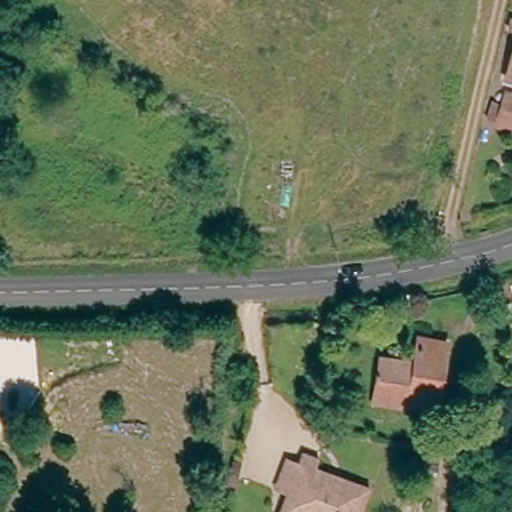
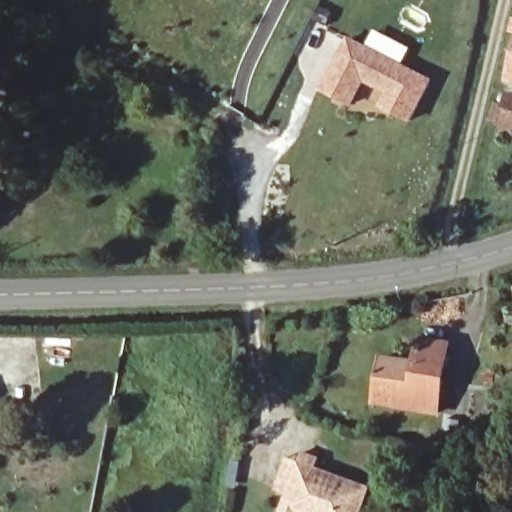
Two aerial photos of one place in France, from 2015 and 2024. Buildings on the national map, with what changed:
new [(433,80),(410,123),(377,107),(385,93),(365,83),(352,107),(320,91),(347,37),(433,80)]
unchanged [(505,77),(512,50),(512,79),(505,77)]
unchanged [(502,125),(510,95),(512,95),(512,127),(502,125)]
unchanged [(449,342),(440,408),(375,400),(381,357),(417,362),(420,337),(449,342)]
unchanged [(428,470),(412,466),(415,451),(431,453),(428,470)]
unchanged [(287,504),(291,495),(278,490),(290,458),(302,462),(306,453),(322,459),(320,468),(373,487),(365,512),(285,512),(287,504)]

